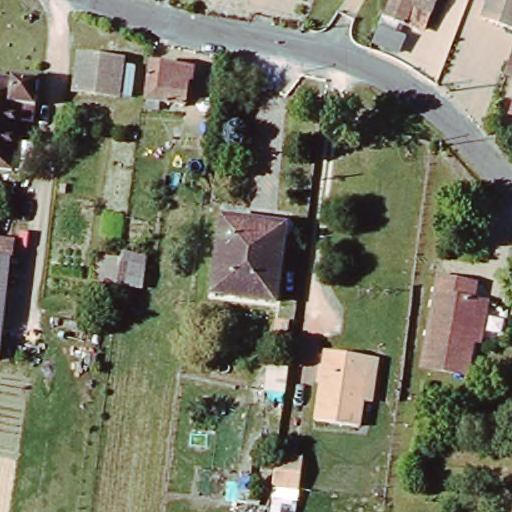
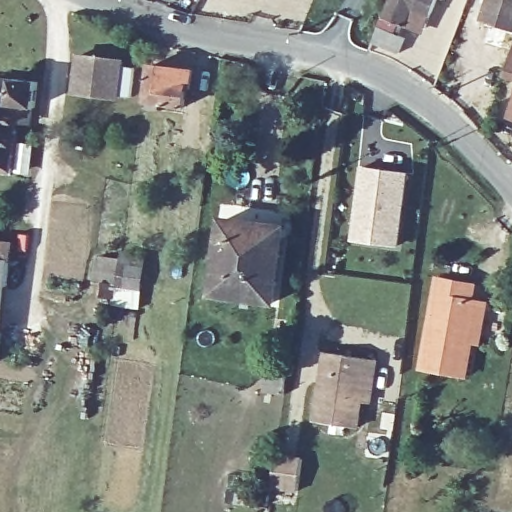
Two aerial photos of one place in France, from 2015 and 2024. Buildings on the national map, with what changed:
unchanged [(427,16),(407,8),(397,35),(402,37),(396,51),(369,42),(378,19),(384,18),(391,0),(435,0),(427,16)]
new [(484,0),(512,0),(512,31),(477,20),(484,0)]
unchanged [(502,77),(512,47),(512,80),(502,77)]
unchanged [(124,62),(119,95),(75,89),(80,56),(124,62)]
unchanged [(154,66),(193,71),(191,86),(189,86),(186,105),(150,100),(150,99),(154,66)]
unchanged [(8,77),(28,79),(35,80),(31,108),(24,107),(16,106),(8,172),(0,171),(0,84),(7,84),(8,77)]
unchanged [(509,115),(512,106),(512,116),(509,115)]
new [(361,168),(405,174),(395,247),(352,241),(361,168)]
unchanged [(284,233),(276,305),(214,297),(222,226),(284,233)]
unchanged [(11,241),(0,331),(0,240),(7,241),(11,241)]
unchanged [(420,370),(436,281),(472,288),(469,304),(476,306),(483,307),(476,346),(469,345),(463,378),(420,370)]
unchanged [(104,294),(105,282),(116,284),(114,296),(104,294)]
unchanged [(362,374),(355,425),(313,420),(321,351),(372,357),(369,374),(362,374)]
unchanged [(269,368),(288,371),(285,397),(266,394),(269,368)]
unchanged [(301,469),(297,501),(271,497),(276,465),(301,469)]

